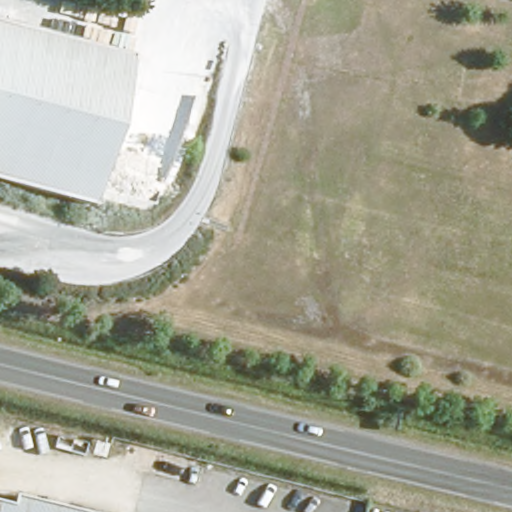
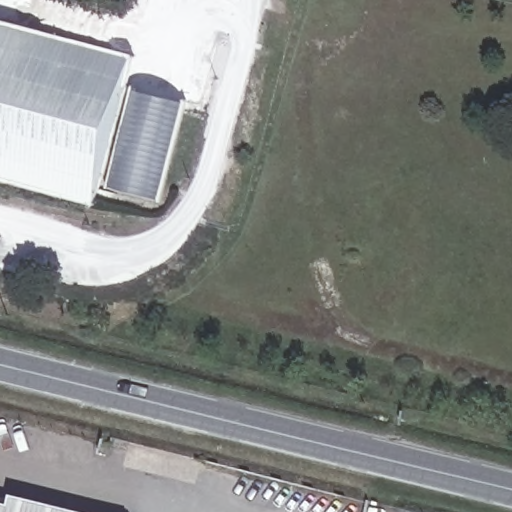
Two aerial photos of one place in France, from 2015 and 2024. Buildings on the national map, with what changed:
unchanged [(135,51),(97,203),(0,178),(0,17),(135,51)]
new [(139,92),(180,103),(155,199),(113,188),(139,92)]
unchanged [(12,503),(15,492),(95,512),(0,512),(0,499),(12,503)]

